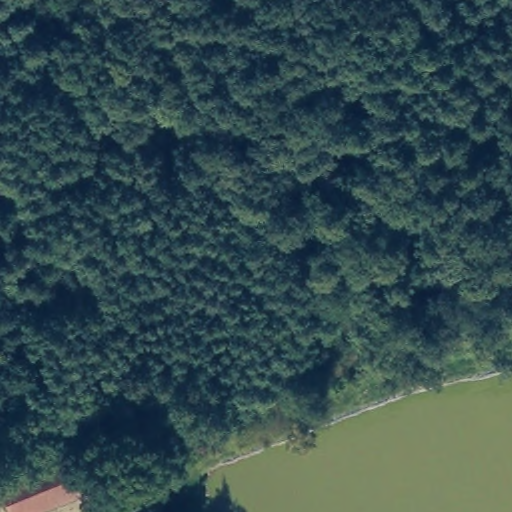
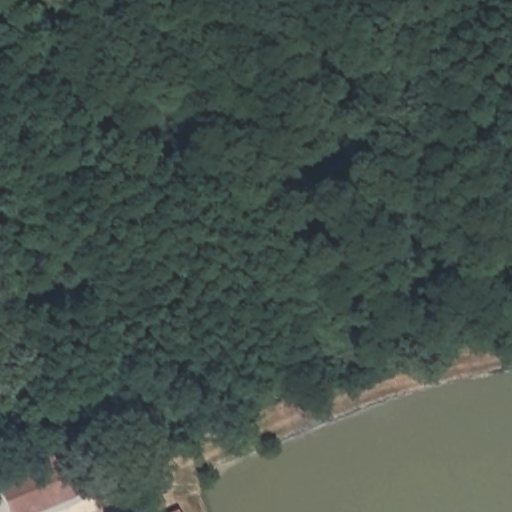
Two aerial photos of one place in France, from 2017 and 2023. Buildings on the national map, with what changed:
unchanged [(91,494),(43,512),(8,512),(0,492),(0,477),(75,446),(91,494)]
unchanged [(168,512),(181,506),(184,512),(168,512)]

